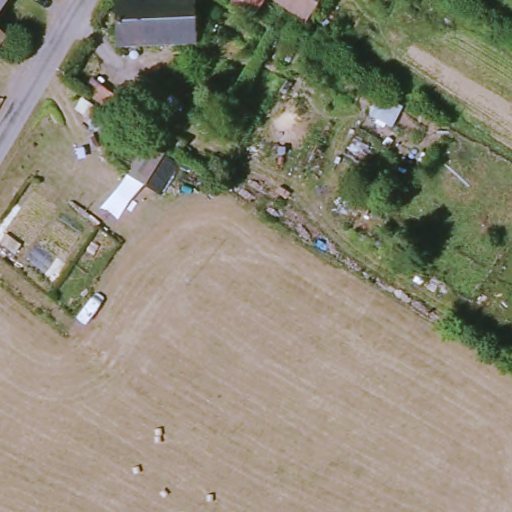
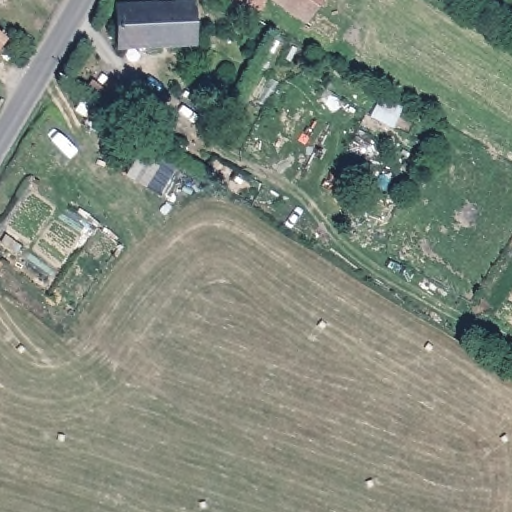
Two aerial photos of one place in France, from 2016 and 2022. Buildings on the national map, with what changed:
unchanged [(44,0),(25,35),(0,19),(0,0),(44,0)]
unchanged [(257,0),(269,8),(257,27),(243,19),(254,0),(257,0)]
unchanged [(277,0),(323,0),(308,25),(274,5),(277,0)]
unchanged [(200,1),(200,44),(122,46),(119,4),(200,1)]
unchanged [(10,39),(0,53),(0,32),(10,39)]

